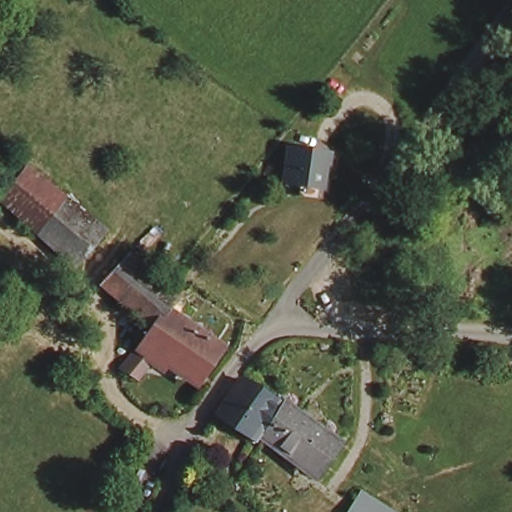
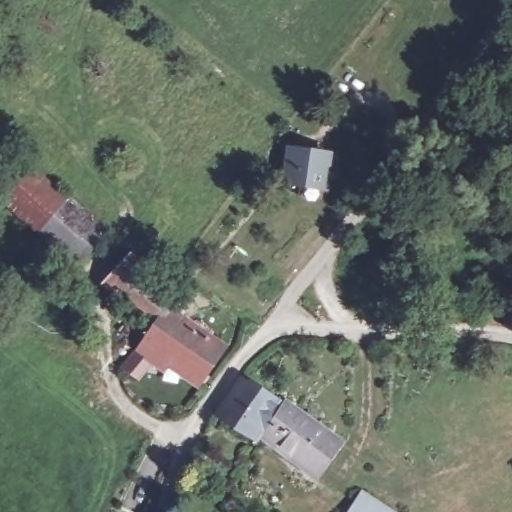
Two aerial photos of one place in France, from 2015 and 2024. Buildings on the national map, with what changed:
unchanged [(300,197),(301,184),(286,182),(289,153),(329,155),(326,185),(324,199),(300,197)]
unchanged [(8,199),(36,169),(56,184),(74,203),(45,234),(8,199)]
unchanged [(96,224),(68,258),(45,234),(74,203),(96,224)]
unchanged [(116,240),(114,243),(88,270),(68,258),(96,224),(116,240)]
unchanged [(186,297),(176,308),(154,331),(125,307),(110,294),(133,264),(149,278),(153,272),(186,297)]
unchanged [(176,308),(228,346),(203,380),(171,356),(160,370),(151,362),(134,382),(120,368),(154,331),(176,308)]
unchanged [(275,406),(256,438),(223,414),(242,383),(275,406)]
unchanged [(289,409),(339,445),(321,474),(271,438),(289,409)]
unchanged [(396,508),(393,512),(336,512),(353,483),(396,508)]

